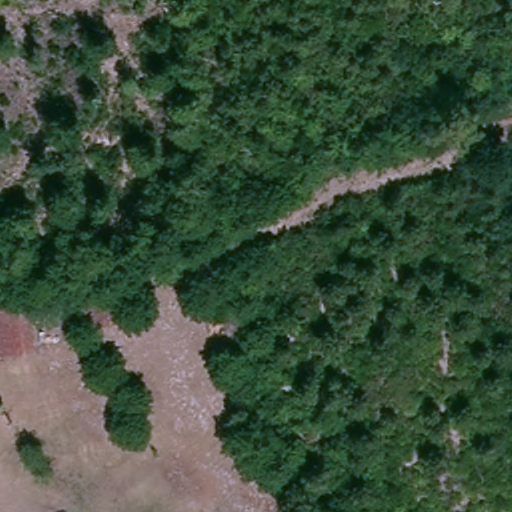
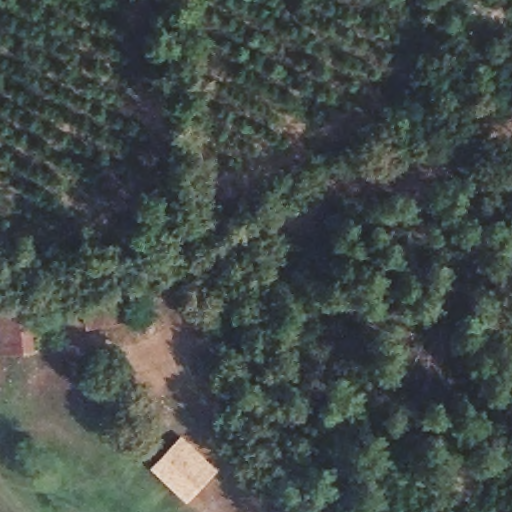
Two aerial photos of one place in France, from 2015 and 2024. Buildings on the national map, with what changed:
unchanged [(14,353),(8,309),(28,308),(33,349),(14,353)]
new [(212,473),(185,501),(152,468),(178,441),(212,473)]

